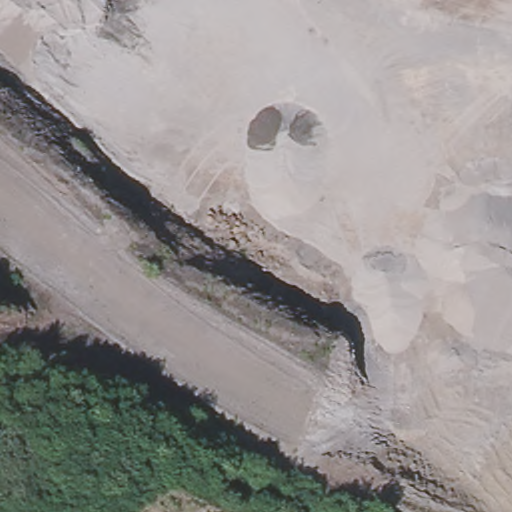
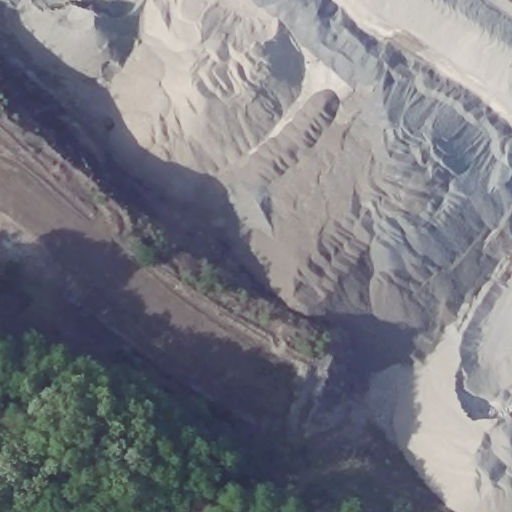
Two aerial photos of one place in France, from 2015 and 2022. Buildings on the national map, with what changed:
[]

